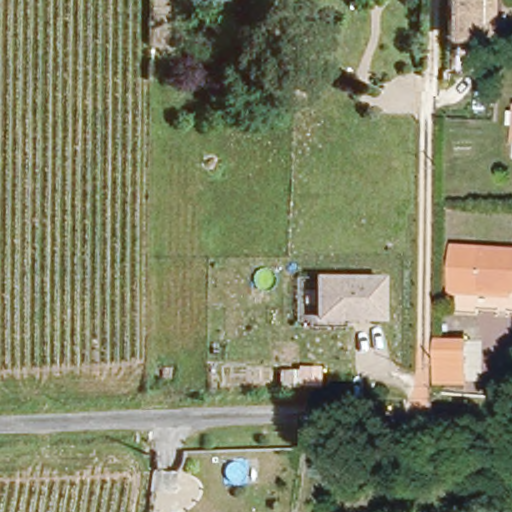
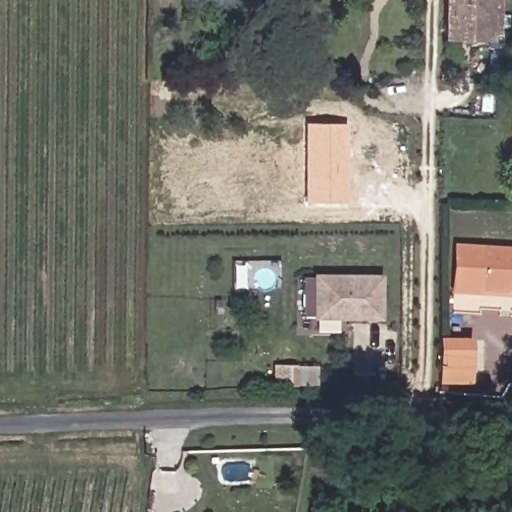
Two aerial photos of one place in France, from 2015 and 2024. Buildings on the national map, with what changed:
unchanged [(447,0),(491,0),(490,35),(445,33),(447,0)]
unchanged [(512,99),(512,150),(508,150),(510,99),(512,99)]
new [(346,124),(346,203),(303,203),(303,122),(346,124)]
unchanged [(512,247),(512,288),(481,287),(481,295),(452,295),(453,245),(512,247)]
unchanged [(383,319),(312,320),(311,273),(382,271),(383,319)]
unchanged [(466,338),(465,378),(436,378),(436,338),(466,338)]

